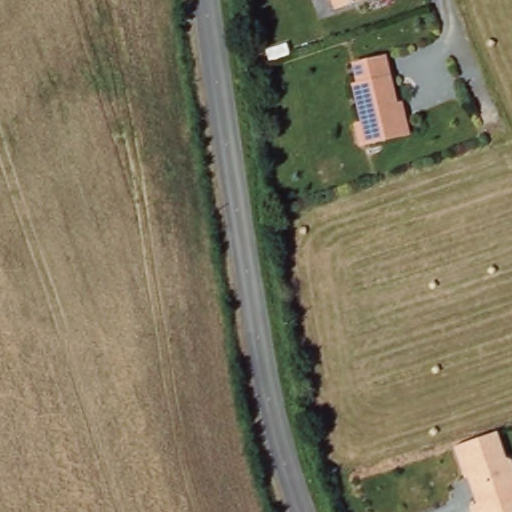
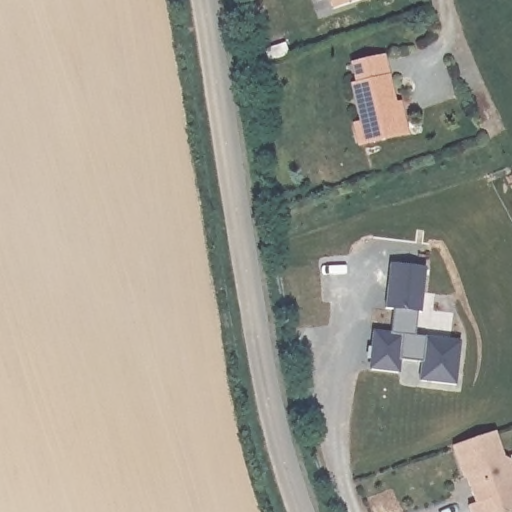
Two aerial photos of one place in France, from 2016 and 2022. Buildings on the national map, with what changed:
unchanged [(365,1),(328,10),(326,0),(365,0),(365,1)]
unchanged [(358,119),(363,117),(353,79),(357,78),(352,58),(382,50),(401,125),(372,133),(362,135),(358,119)]
new [(365,332),(384,332),(385,308),(375,308),(375,261),(413,262),(413,310),(408,310),(407,333),(456,334),(455,378),(417,378),(418,358),(397,358),(397,371),(365,371),(365,332)]
unchanged [(512,455),(512,512),(478,512),(474,502),(481,499),(471,473),(468,475),(456,442),(464,440),(495,427),(498,426),(507,452),(512,455)]

